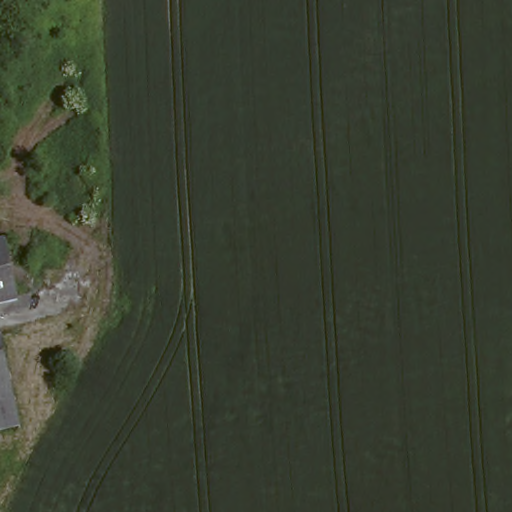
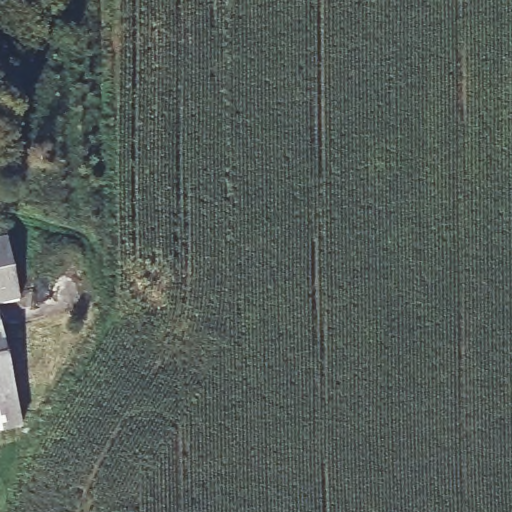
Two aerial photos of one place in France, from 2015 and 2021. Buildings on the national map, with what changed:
unchanged [(13,241),(23,304),(0,308),(0,243),(13,241)]
unchanged [(19,427),(0,431),(0,324),(19,427)]

